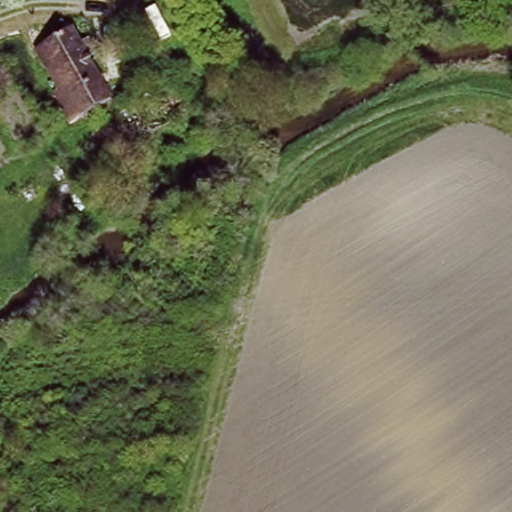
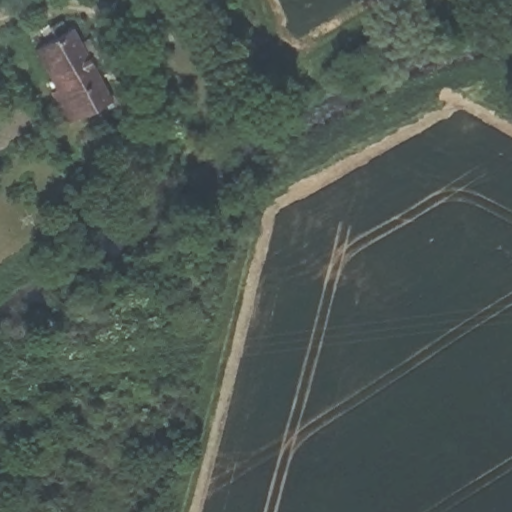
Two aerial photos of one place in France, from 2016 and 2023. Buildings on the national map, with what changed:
unchanged [(42,51),(61,40),(55,29),(68,23),(73,34),(78,30),(119,105),(79,129),(58,96),(64,93),(50,65),(42,51)]
unchanged [(86,137),(100,129),(176,84),(193,113),(117,158),(104,165),(86,137)]

